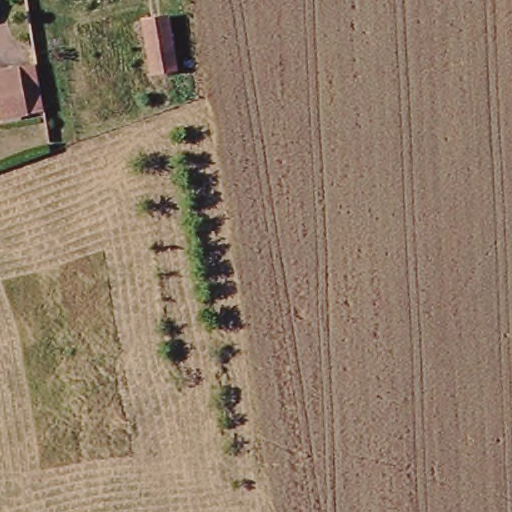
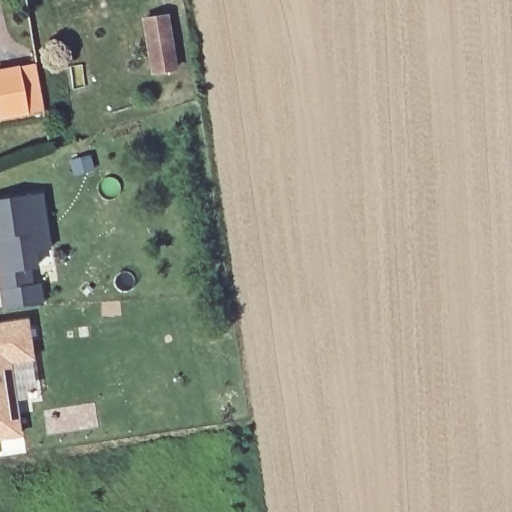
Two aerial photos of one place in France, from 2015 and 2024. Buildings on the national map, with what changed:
unchanged [(146,66),(137,15),(159,11),(170,61),(146,66)]
unchanged [(38,111),(0,118),(0,72),(31,66),(38,111)]
new [(0,305),(0,199),(38,194),(42,225),(45,249),(30,251),(32,266),(24,267),(27,284),(33,284),(36,304),(0,305)]
new [(21,321),(26,358),(3,361),(13,434),(0,436),(0,323),(21,321)]

